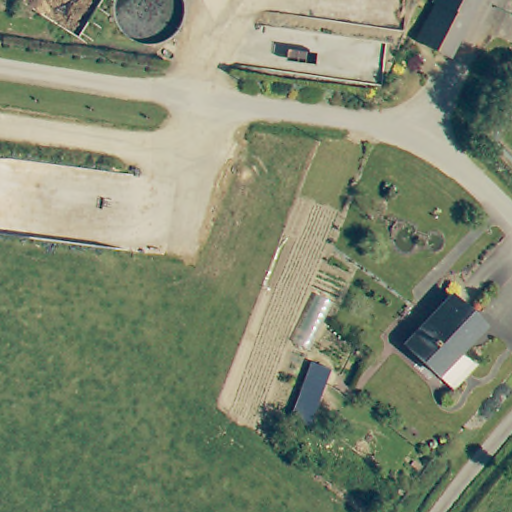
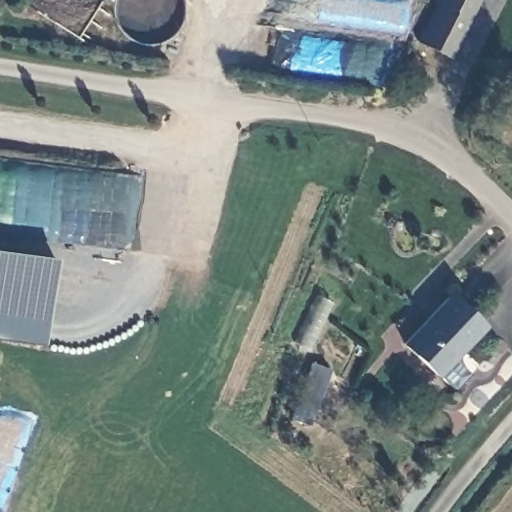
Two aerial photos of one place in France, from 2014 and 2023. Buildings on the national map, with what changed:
unchanged [(474,0),(447,54),(417,36),(438,0),(474,0)]
new [(52,256),(41,340),(0,336),(0,250),(52,256)]
unchanged [(484,325),(438,371),(406,340),(450,293),(484,325)]
new [(297,418),(308,363),(327,369),(314,421),(297,418)]

